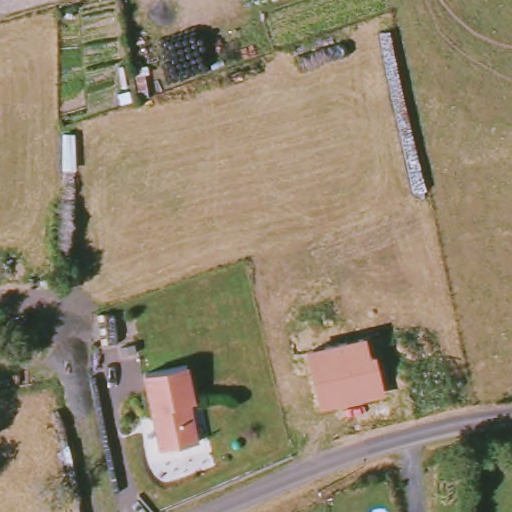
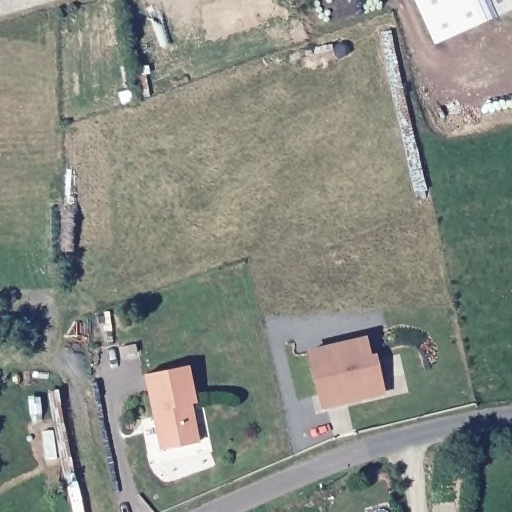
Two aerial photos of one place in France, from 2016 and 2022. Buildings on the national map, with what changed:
new [(512,9),(434,46),(413,0),(512,0),(512,9)]
unchanged [(371,353),(376,352),(385,393),(320,410),(305,350),(367,335),(371,353)]
unchanged [(188,365),(195,402),(190,404),(198,442),(160,450),(145,374),(188,365)]

